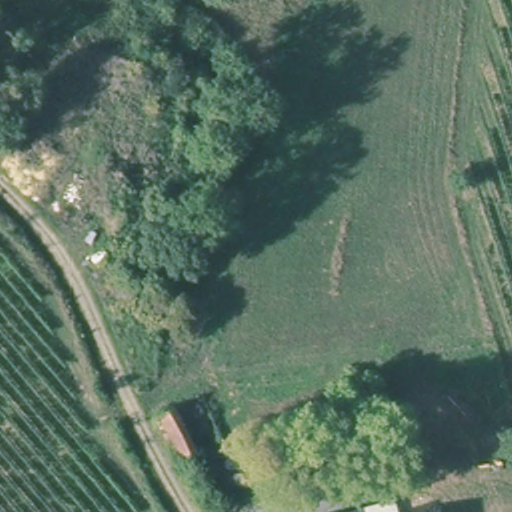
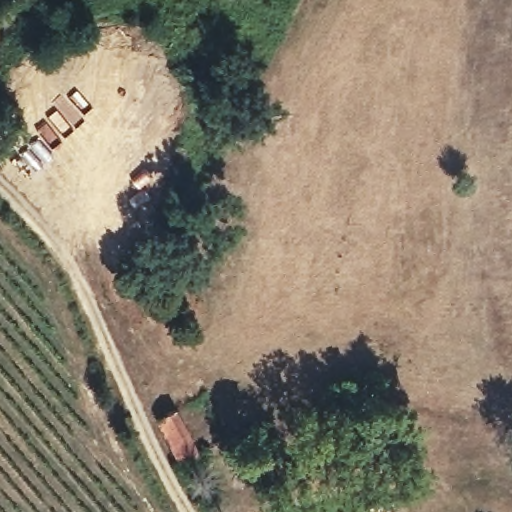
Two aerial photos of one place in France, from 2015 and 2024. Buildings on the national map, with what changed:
unchanged [(196,453),(176,460),(162,417),(181,410),(196,453)]

